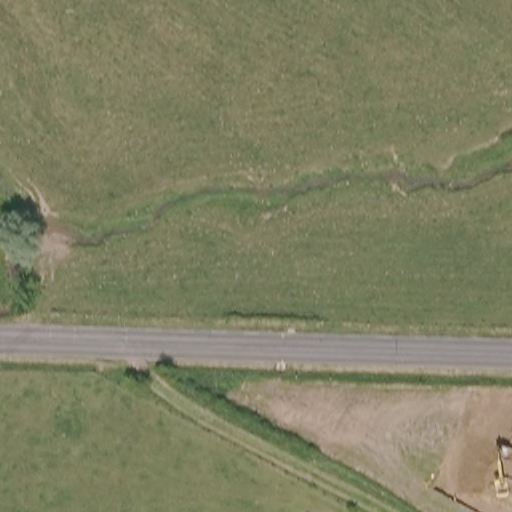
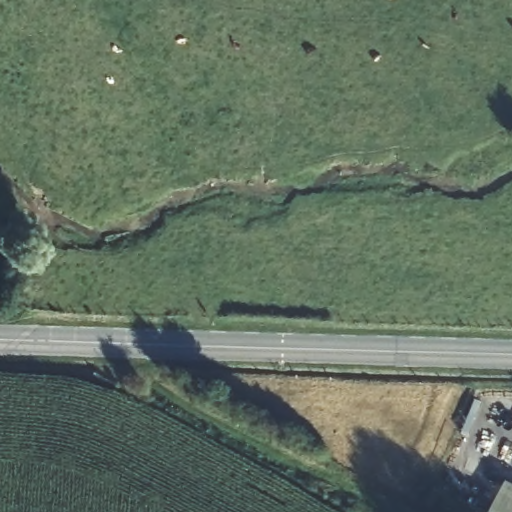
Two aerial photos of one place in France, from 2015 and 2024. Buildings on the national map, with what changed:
new [(504,481),(512,485),(512,512),(489,512),(504,481)]

